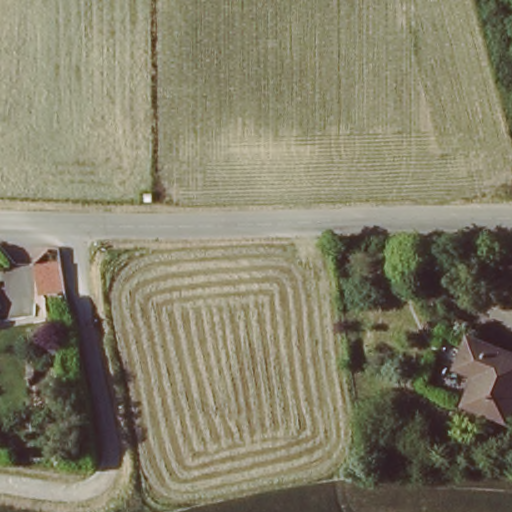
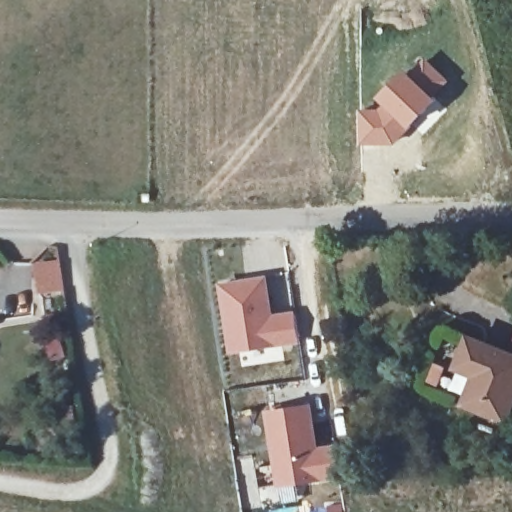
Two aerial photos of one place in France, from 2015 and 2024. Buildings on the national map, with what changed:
new [(384,101),(379,96),(409,69),(425,55),(452,80),(439,97),(402,136),(396,145),(360,145),(361,108),(379,107),(384,101)]
new [(270,275),(277,312),(297,309),(302,343),(232,354),(222,283),(270,275)]
unchanged [(512,360),(512,398),(502,423),(461,407),(474,375),(455,366),(465,341),(512,360)]
new [(314,404),(320,445),(336,444),(341,477),(278,487),(266,411),(314,404)]

